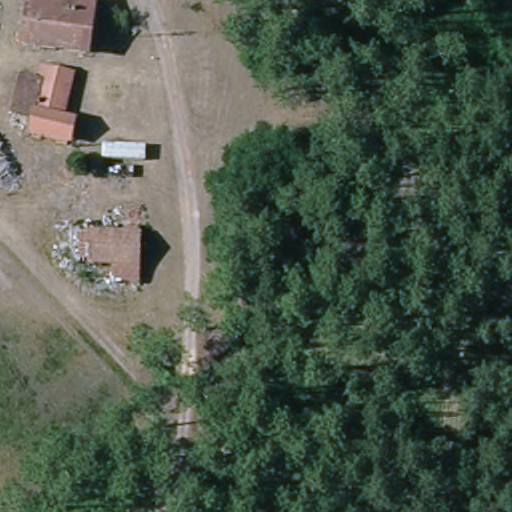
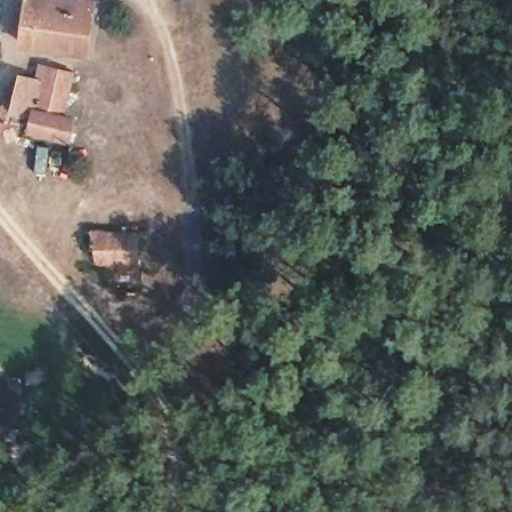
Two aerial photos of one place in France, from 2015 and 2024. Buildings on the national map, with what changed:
unchanged [(93,15),(57,10),(56,16),(39,14),(37,32),(27,31),(32,0),(62,0),(95,4),(93,15)]
unchanged [(88,54),(25,46),(27,31),(37,32),(39,14),(56,16),(57,10),(93,15),(88,54)]
unchanged [(63,122),(75,125),(70,147),(30,138),(34,123),(13,119),(22,82),(38,86),(41,72),(73,79),(63,122)]
unchanged [(86,212),(66,213),(65,196),(85,195),(86,212)]
unchanged [(138,280),(77,279),(77,267),(90,268),(90,231),(117,232),(117,209),(136,209),(136,218),(139,218),(138,280)]

